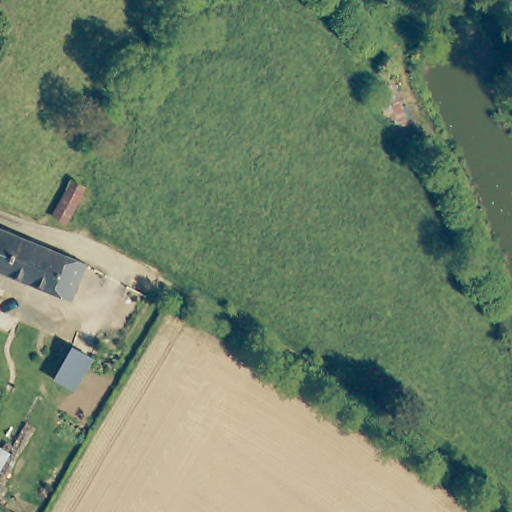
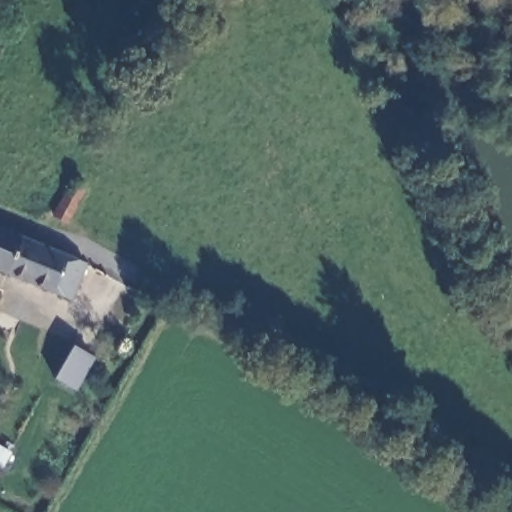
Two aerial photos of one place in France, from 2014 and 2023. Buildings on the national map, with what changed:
unchanged [(20,225),(6,260),(0,258),(0,217),(20,225)]
unchanged [(20,225),(85,251),(72,287),(6,260),(20,225)]
unchanged [(90,360),(72,392),(52,382),(70,349),(90,360)]

